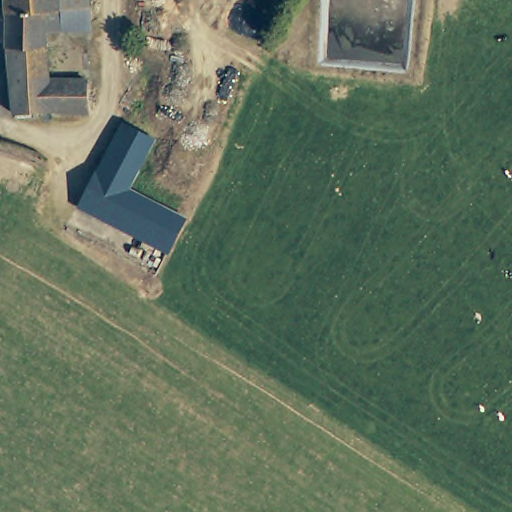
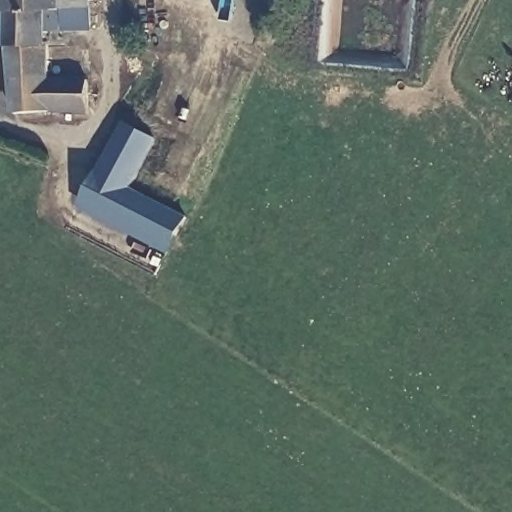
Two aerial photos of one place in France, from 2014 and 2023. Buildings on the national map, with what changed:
unchanged [(5,0),(84,0),(84,5),(40,7),(42,32),(45,85),(85,84),(87,112),(43,114),(15,119),(5,0)]
unchanged [(42,32),(40,7),(84,5),(86,29),(42,32)]
unchanged [(98,179),(121,132),(128,118),(162,136),(154,150),(132,196),(98,179)]
unchanged [(184,223),(168,254),(83,212),(98,179),(132,196),(184,223)]

